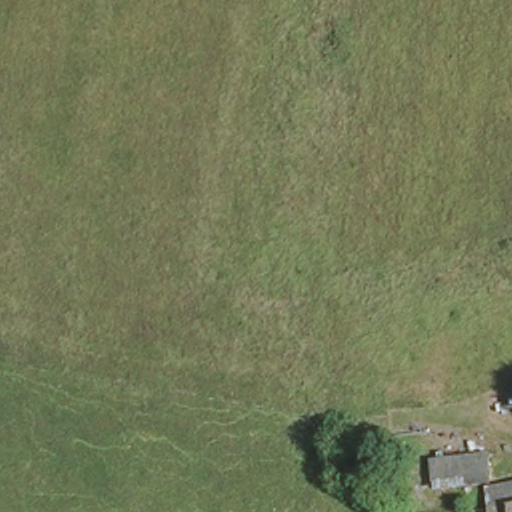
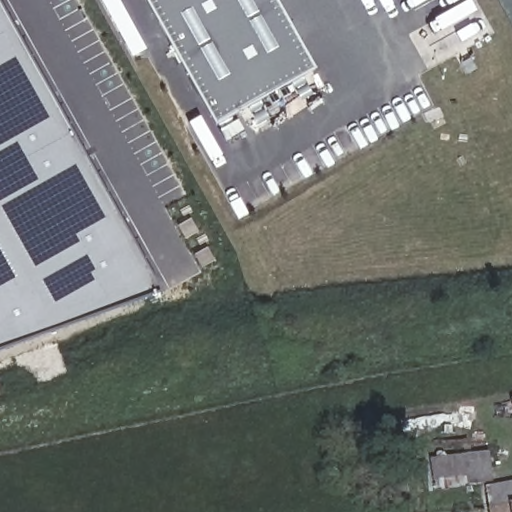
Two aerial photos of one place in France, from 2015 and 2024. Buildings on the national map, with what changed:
new [(314,68),(216,124),(147,0),(276,0),(314,68)]
new [(162,293),(0,351),(0,2),(162,293)]
unchanged [(430,455),(485,450),(489,476),(432,481),(430,455)]
unchanged [(512,476),(512,498),(486,503),(482,482),(512,476)]
unchanged [(512,512),(510,512),(489,512),(486,503),(512,498),(512,512)]

